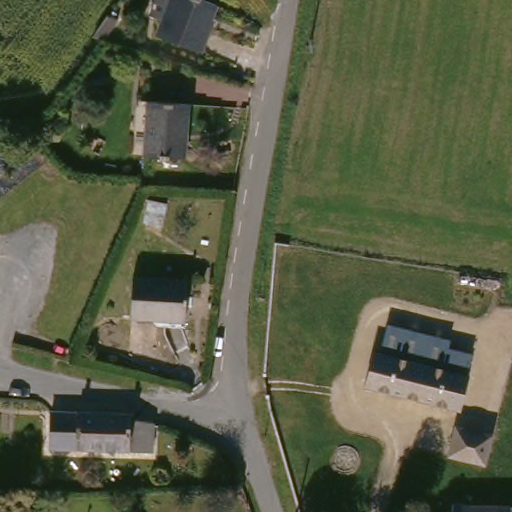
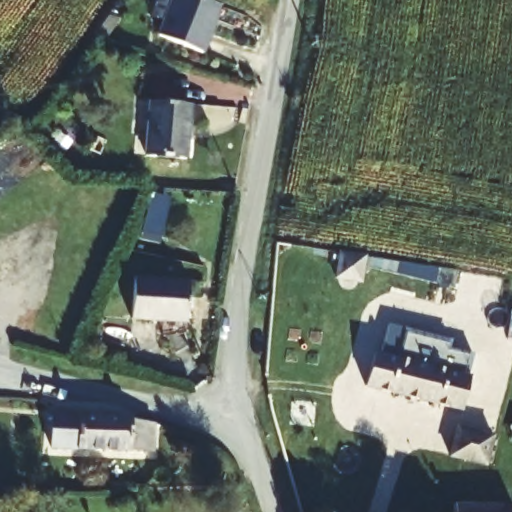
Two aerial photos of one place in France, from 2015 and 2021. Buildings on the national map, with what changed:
unchanged [(206,56),(161,41),(167,25),(154,21),(161,0),(198,0),(222,9),(214,28),(216,29),(206,56)]
unchanged [(113,16),(125,21),(109,40),(97,36),(113,16)]
unchanged [(186,109),(184,166),(146,163),(150,106),(186,109)]
unchanged [(188,284),(182,328),(130,320),(135,277),(188,284)]
unchanged [(446,347),(440,372),(371,356),(376,331),(446,347)]
unchanged [(465,378),(456,411),(363,391),(371,356),(440,372),(465,378)]
unchanged [(60,415),(150,425),(147,454),(132,454),(131,458),(60,452),(60,415)]
unchanged [(460,421),(480,425),(480,439),(486,441),(478,472),(448,467),(460,421)]
unchanged [(454,508),(510,508),(511,512),(454,512),(454,508)]

